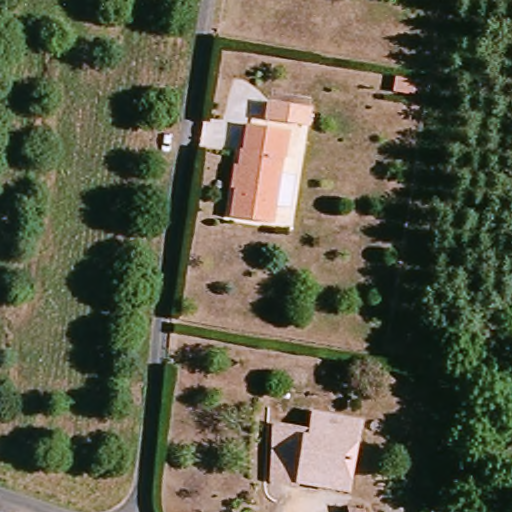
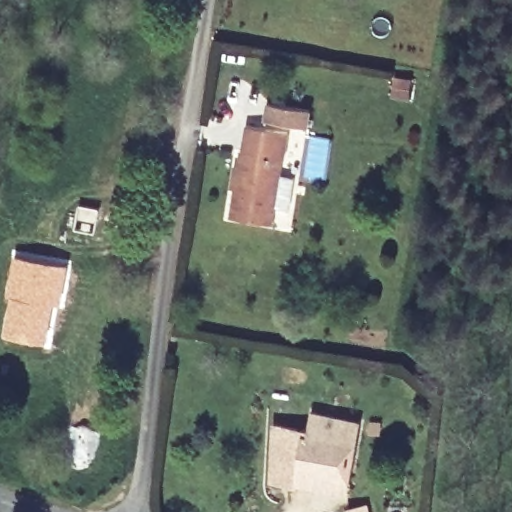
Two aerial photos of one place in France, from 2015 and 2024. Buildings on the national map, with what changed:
unchanged [(271,114),(274,97),(315,105),(312,121),(271,114)]
unchanged [(281,158),(269,222),(230,215),(242,150),(245,148),(247,131),(249,124),(288,131),(287,139),(284,158),(281,158)]
new [(80,208),(100,212),(96,237),(75,233),(80,208)]
new [(15,300),(11,299),(19,260),(67,269),(60,308),(54,307),(47,346),(7,339),(15,300)]
unchanged [(299,491),(257,485),(265,441),(265,431),(283,433),(285,415),(305,417),(342,421),(342,425),(360,428),(350,486),(348,498),(299,491)]
unchanged [(365,508),(365,512),(348,512),(347,507),(365,508)]

